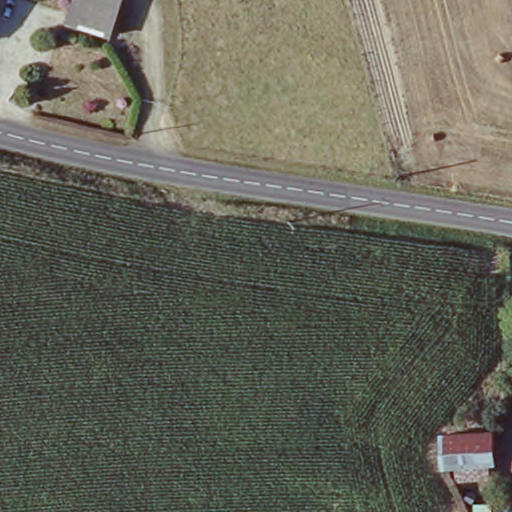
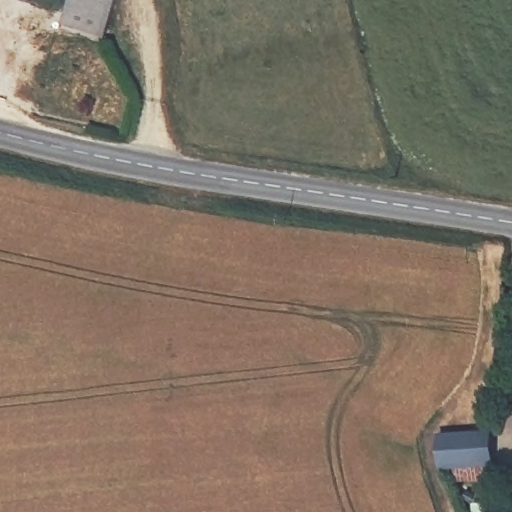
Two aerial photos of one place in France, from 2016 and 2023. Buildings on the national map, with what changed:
unchanged [(62,19),(68,0),(117,0),(105,33),(62,19)]
unchanged [(493,461),(440,465),(437,432),(490,429),(493,461)]
unchanged [(483,512),(483,501),(509,502),(509,512),(483,512)]

